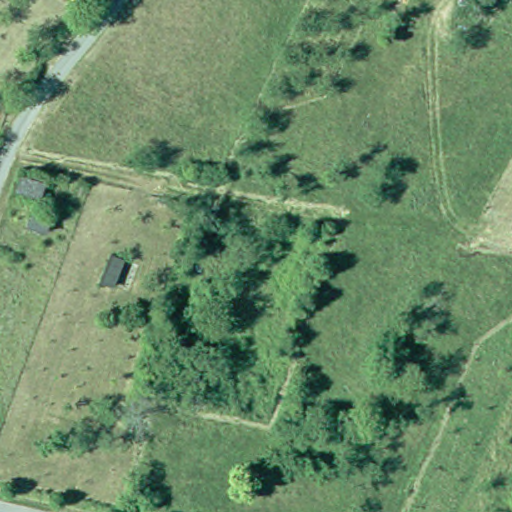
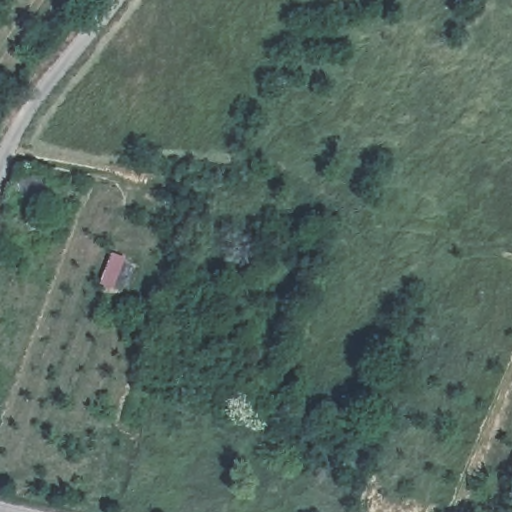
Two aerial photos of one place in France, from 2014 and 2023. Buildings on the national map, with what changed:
unchanged [(40,198),(15,191),(18,176),(27,177),(28,172),(45,176),(40,198)]
unchanged [(51,215),(47,230),(28,224),(33,209),(51,215)]

